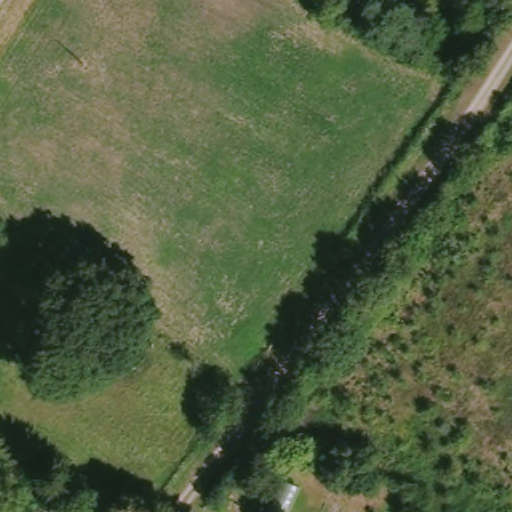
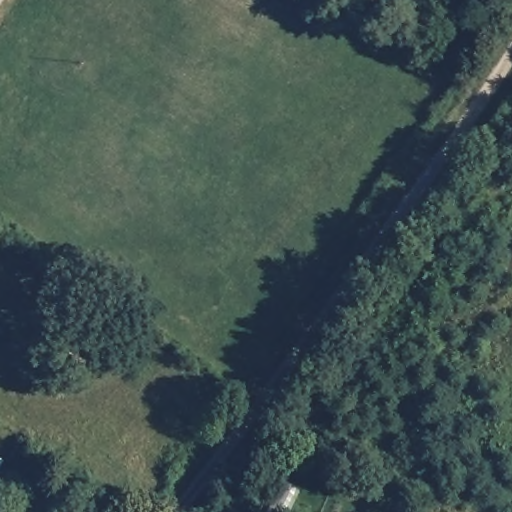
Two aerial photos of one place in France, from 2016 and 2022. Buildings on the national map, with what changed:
[]

